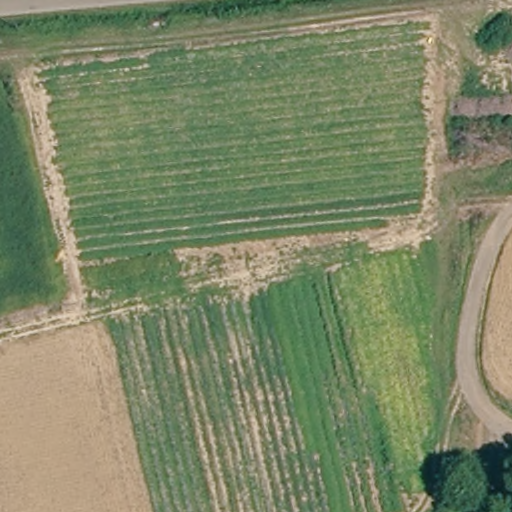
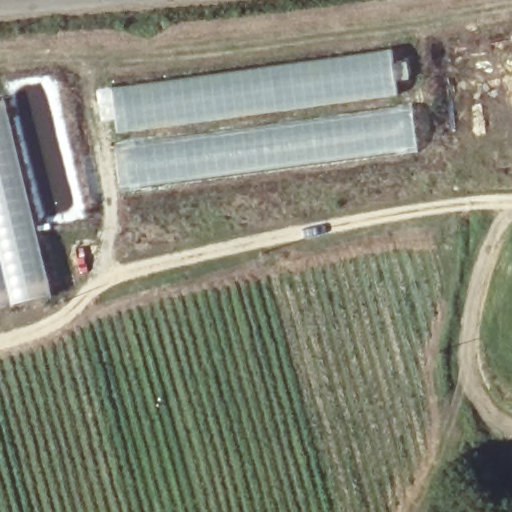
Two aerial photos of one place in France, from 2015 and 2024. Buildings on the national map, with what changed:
new [(398,93),(119,132),(112,89),(392,51),(398,93)]
new [(0,309),(0,102),(4,102),(51,296),(0,309)]
new [(412,110),(418,148),(121,189),(116,151),(412,110)]

